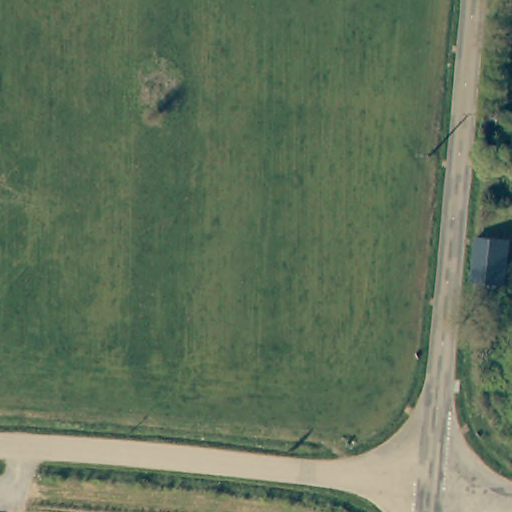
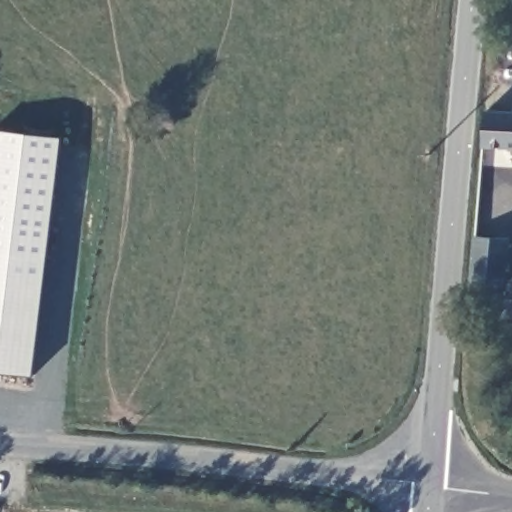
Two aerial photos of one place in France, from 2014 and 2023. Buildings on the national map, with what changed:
new [(48,255),(0,250),(0,132),(60,138),(48,255)]
unchanged [(512,287),(478,285),(481,241),(512,242),(512,278),(512,287)]
new [(37,370),(0,366),(0,250),(48,255),(37,370)]

